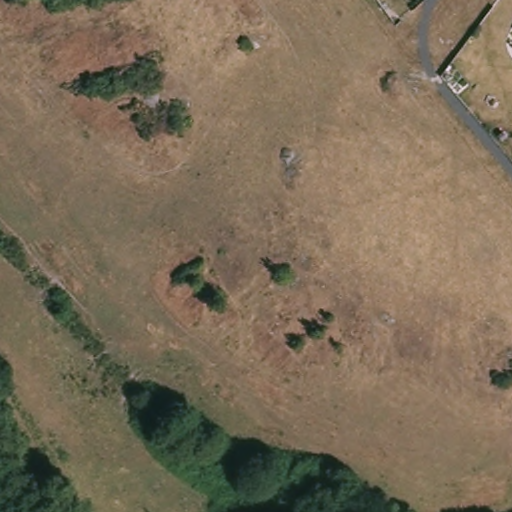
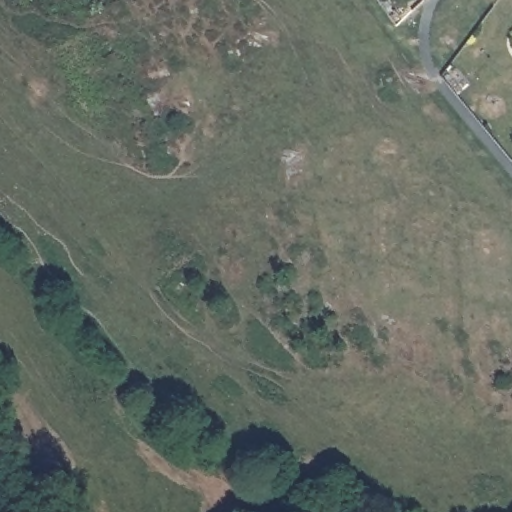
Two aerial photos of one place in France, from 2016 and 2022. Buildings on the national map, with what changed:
[]

